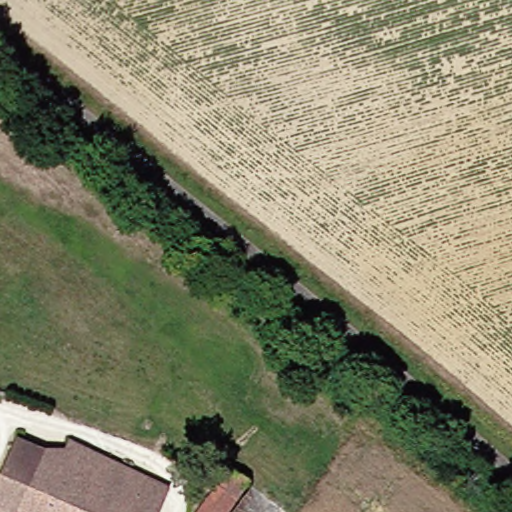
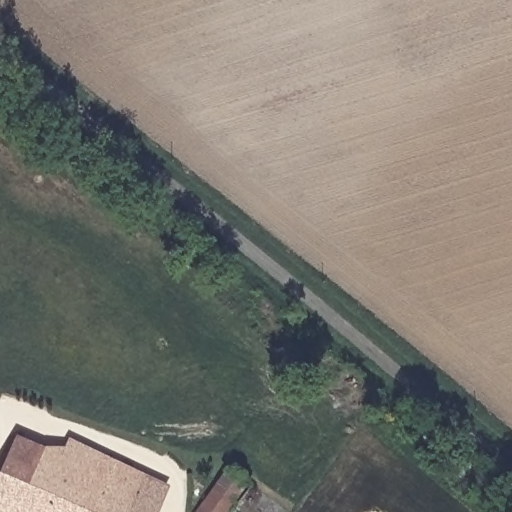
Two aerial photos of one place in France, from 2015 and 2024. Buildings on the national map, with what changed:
unchanged [(52,458),(145,498),(139,512),(0,512),(0,501),(24,445),(52,458)]
unchanged [(52,458),(81,449),(171,492),(163,512),(139,512),(145,498),(52,458)]
unchanged [(198,512),(225,468),(249,483),(227,512),(198,512)]

